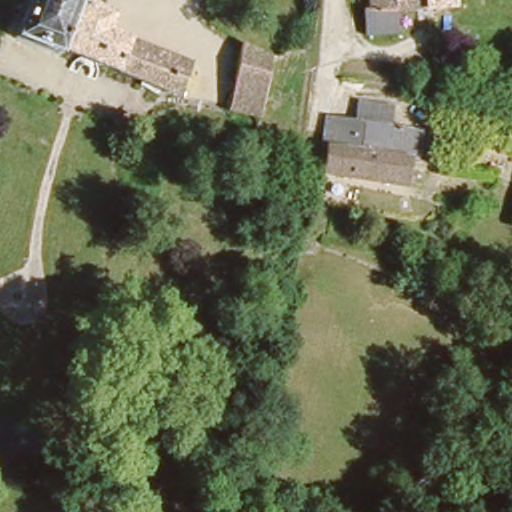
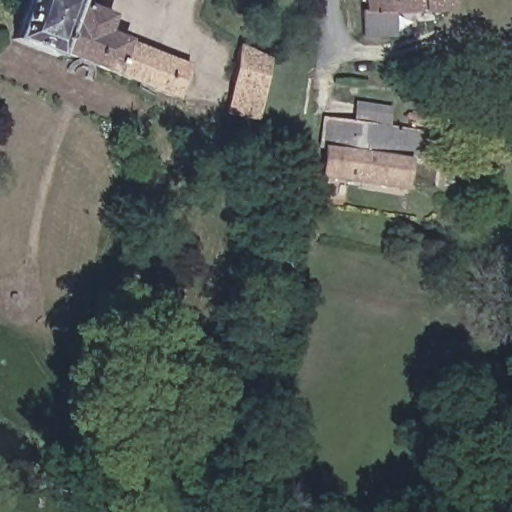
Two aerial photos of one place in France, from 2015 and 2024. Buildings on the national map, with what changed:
unchanged [(72,4),(105,18),(101,32),(182,68),(174,101),(56,54),(53,60),(10,43),(25,0),(73,0),(72,4)]
unchanged [(447,2),(388,6),(388,12),(392,12),(392,24),(356,25),(355,7),(357,7),(358,0),(447,0),(447,2)]
unchanged [(256,121),(224,111),(239,48),(269,62),(256,121)]
unchanged [(350,91),(392,96),(388,127),(347,122),(350,91)]
unchanged [(347,122),(388,127),(441,133),(435,165),(427,165),(421,194),(319,176),(319,149),(311,148),(317,118),(347,122)]
unchanged [(299,236),(312,238),(307,254),(296,251),(299,236)]

